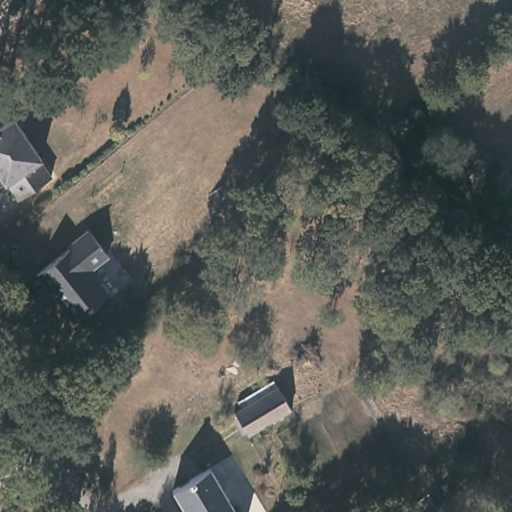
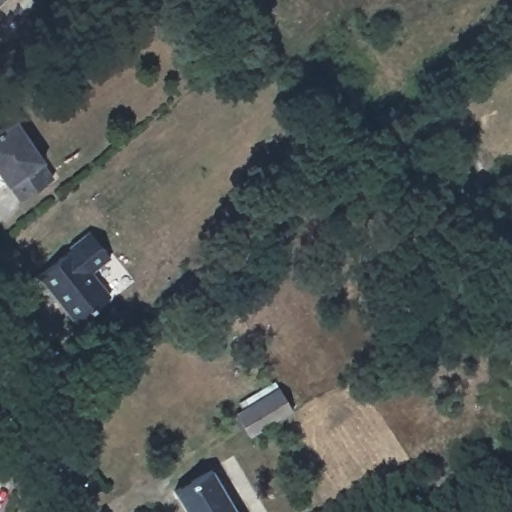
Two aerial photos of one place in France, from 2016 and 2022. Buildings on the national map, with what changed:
unchanged [(0,0),(4,0),(0,3),(0,0)]
unchanged [(50,169),(18,191),(8,176),(4,178),(0,172),(0,120),(15,110),(42,153),(40,154),(50,169)]
unchanged [(77,321),(40,275),(72,248),(70,244),(89,229),(111,256),(93,270),(111,295),(77,321)]
unchanged [(249,435),(235,414),(278,388),(291,410),(249,435)]
unchanged [(174,492),(211,470),(234,512),(185,512),(174,492)]

